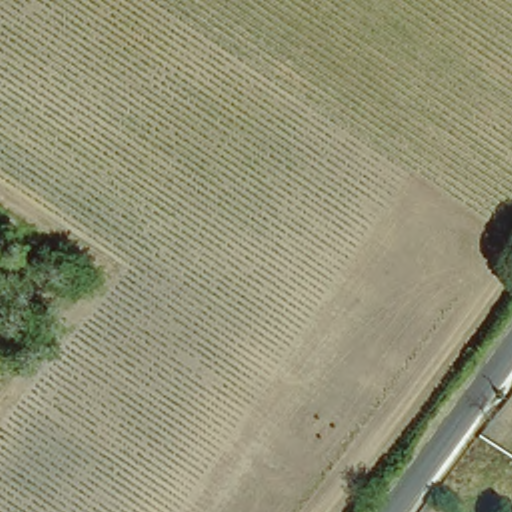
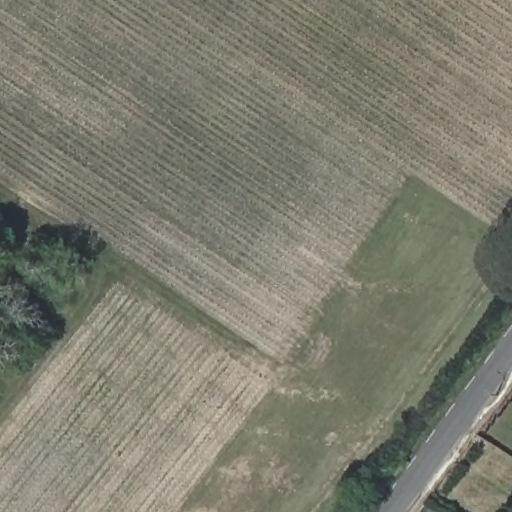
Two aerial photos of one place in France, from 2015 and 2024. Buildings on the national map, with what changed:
[]

